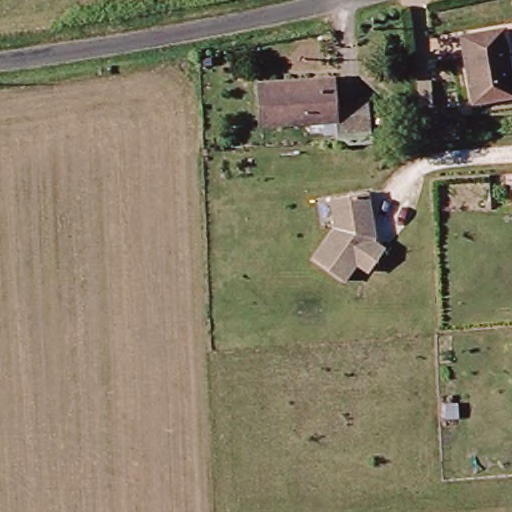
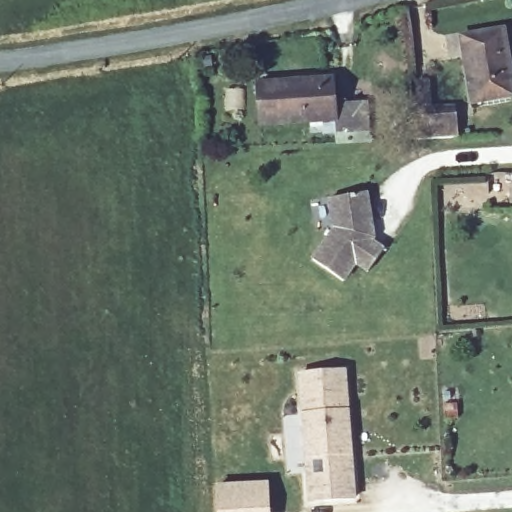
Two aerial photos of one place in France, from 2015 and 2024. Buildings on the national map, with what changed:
unchanged [(502,94),(459,96),(458,30),(500,29),(502,94)]
unchanged [(332,111),(257,121),(251,80),(326,70),(332,111)]
unchanged [(450,104),(450,133),(407,135),(407,106),(450,104)]
unchanged [(332,200),(370,194),(375,222),(368,231),(369,238),(385,250),(370,273),(358,264),(345,282),(315,261),(336,229),(332,200)]
new [(346,368),(355,497),(308,502),(298,372),(346,368)]
new [(261,512),(212,512),(211,487),(260,486),(261,512)]

